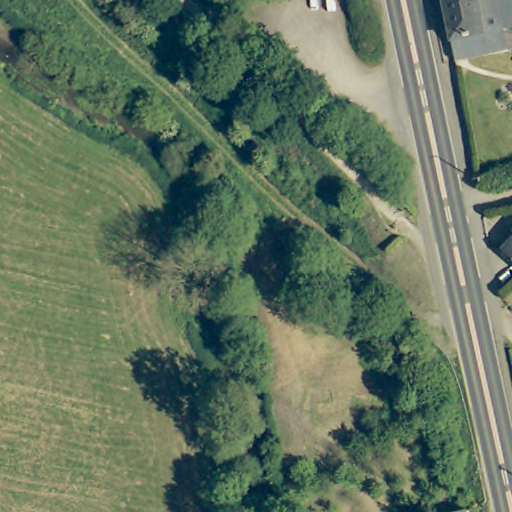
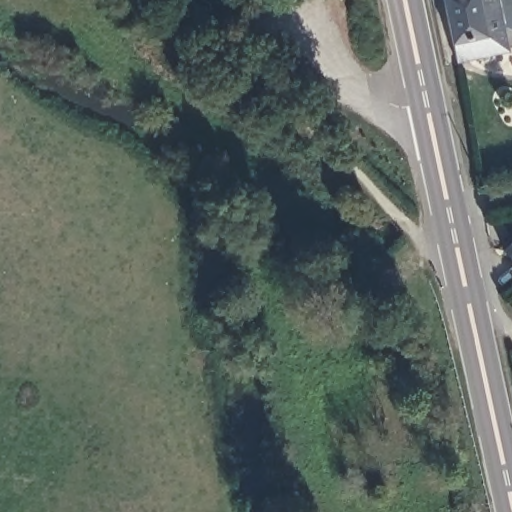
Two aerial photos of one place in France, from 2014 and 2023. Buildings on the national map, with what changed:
unchanged [(497,22),(503,47),(453,58),(441,0),(493,0),(497,22)]
unchanged [(512,28),(497,22),(493,0),(512,0),(512,28)]
unchanged [(512,236),(512,263),(498,250),(512,236)]
unchanged [(469,512),(454,512),(468,508),(469,512)]

